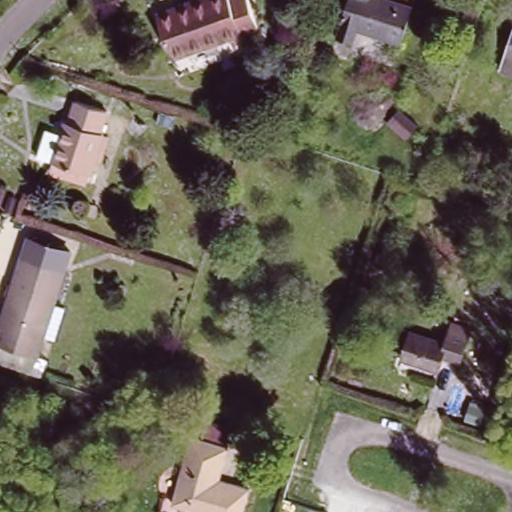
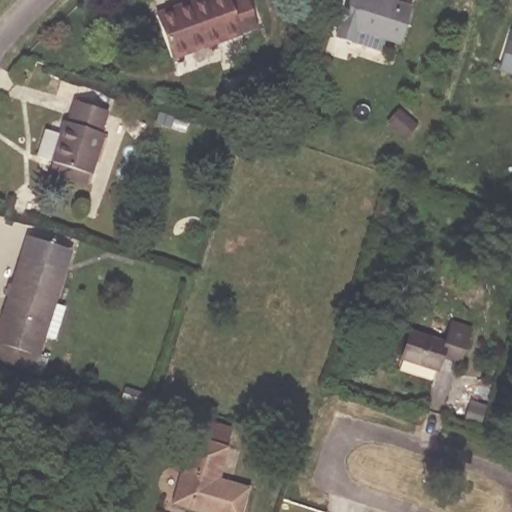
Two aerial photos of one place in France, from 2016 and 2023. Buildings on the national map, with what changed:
unchanged [(258,24),(242,30),(170,55),(156,12),(190,0),(250,0),(258,24)]
unchanged [(400,44),(356,30),(351,44),(335,39),(348,0),(382,0),(411,9),(400,44)]
unchanged [(512,32),(512,76),(498,71),(512,32)]
unchanged [(50,173),(53,162),(66,123),(69,124),(77,102),(107,113),(100,134),(103,136),(103,138),(108,140),(101,163),(95,161),(90,176),(87,185),(50,173)]
unchanged [(286,116),(276,112),(280,104),(289,107),(286,116)]
unchanged [(165,128),(151,124),(154,113),(169,118),(165,128)]
unchanged [(28,236),(74,250),(40,358),(46,359),(41,376),(0,362),(0,345),(1,344),(0,344),(0,323),(28,236)]
unchanged [(387,257),(383,269),(369,265),(372,253),(387,257)]
unchanged [(458,364),(440,358),(436,370),(401,358),(409,332),(444,344),(451,325),(469,331),(458,364)]
unchanged [(138,393),(133,406),(115,400),(119,387),(138,393)]
unchanged [(166,407),(161,422),(150,418),(155,404),(166,407)]
unchanged [(197,512),(171,503),(192,436),(229,448),(224,463),(219,479),(249,489),(242,512),(197,512)]

